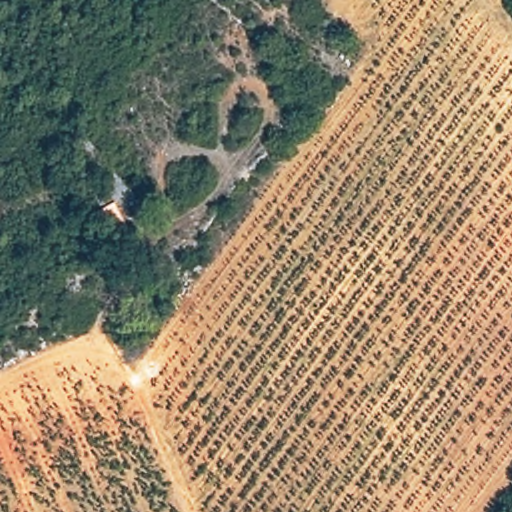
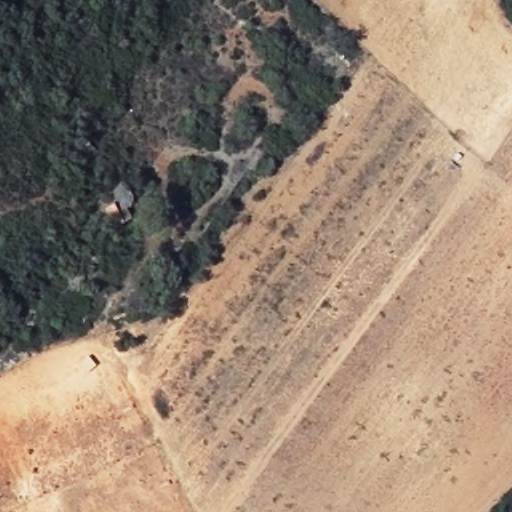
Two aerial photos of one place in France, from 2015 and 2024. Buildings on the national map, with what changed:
unchanged [(125,184),(135,205),(102,224),(91,204),(125,184)]

